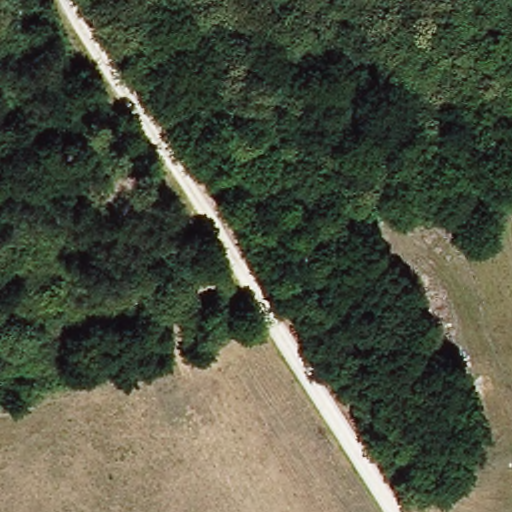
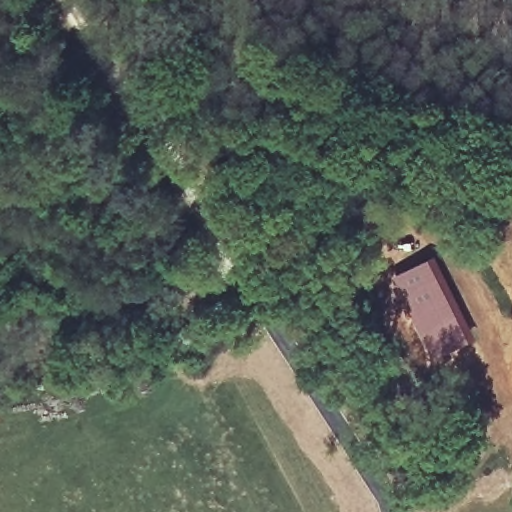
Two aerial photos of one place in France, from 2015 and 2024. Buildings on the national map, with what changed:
new [(434,256),(476,341),(419,377),(398,336),(401,334),(384,296),(389,293),(383,280),(434,256)]

